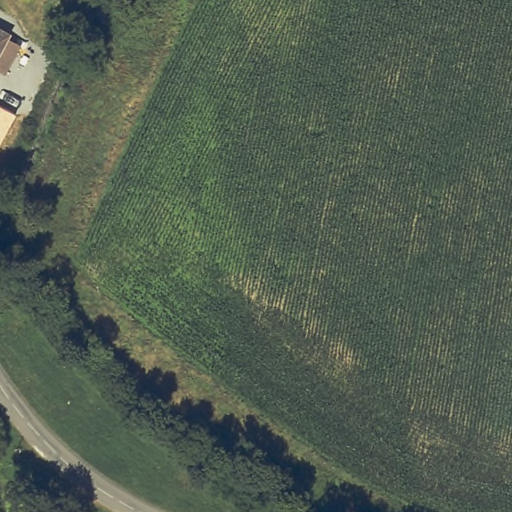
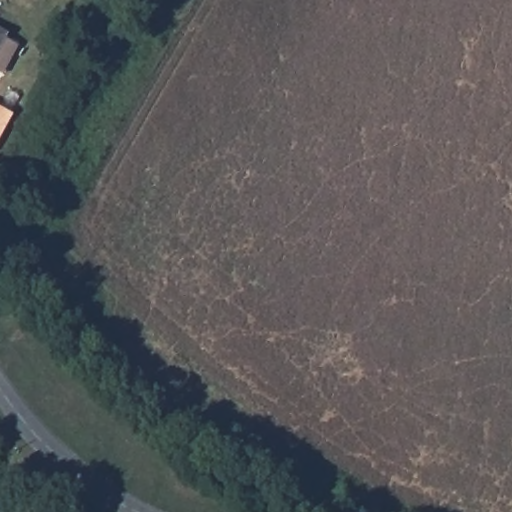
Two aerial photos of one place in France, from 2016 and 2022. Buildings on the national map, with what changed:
unchanged [(0,29),(11,35),(0,54),(0,29)]
unchanged [(0,145),(0,104),(18,111),(0,145)]

